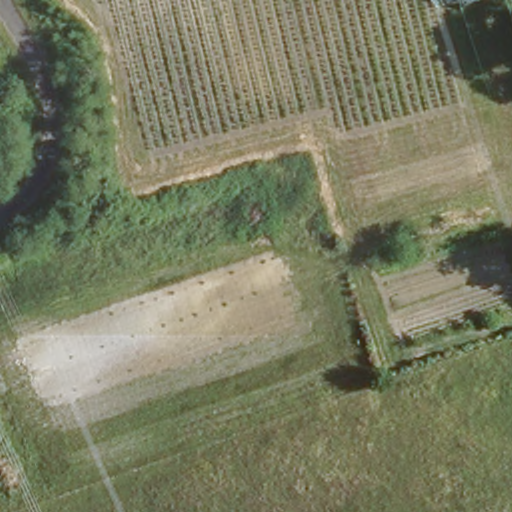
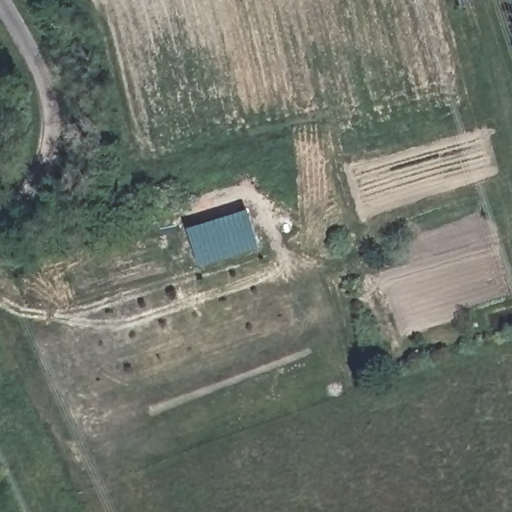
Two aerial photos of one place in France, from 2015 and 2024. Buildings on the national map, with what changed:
new [(199,264),(187,228),(248,209),(260,246),(199,264)]

